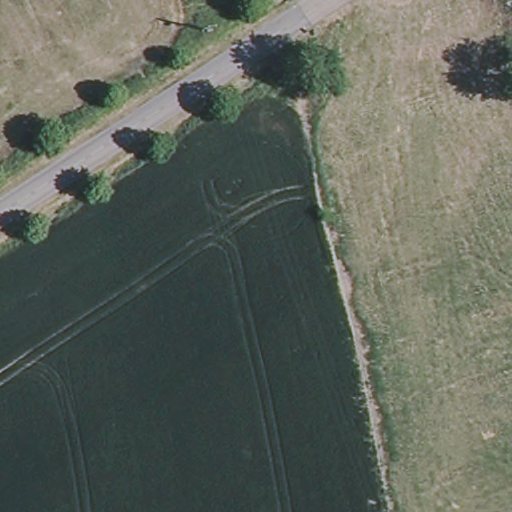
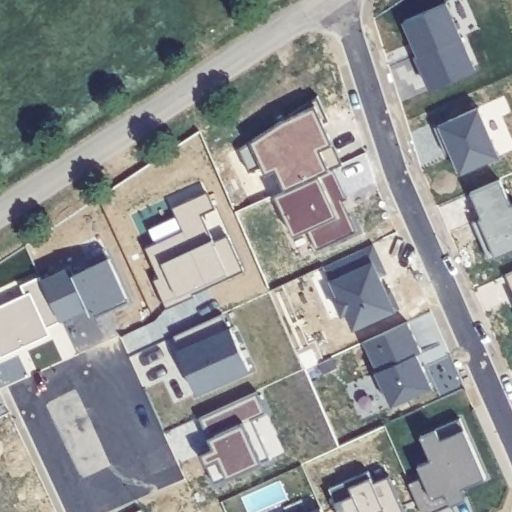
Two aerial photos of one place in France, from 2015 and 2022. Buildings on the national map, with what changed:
new [(403,19),(444,2),(473,67),(429,87),(415,54),(417,52),(412,41),(403,19)]
new [(327,119),(322,122),(341,161),(341,162),(332,167),(282,190),(269,162),(246,172),(236,149),(316,95),(327,119)]
new [(477,105),(498,154),(459,171),(450,151),(445,154),(433,125),(477,105)]
new [(282,190),(332,167),(346,197),(339,201),(346,215),(349,214),(356,231),(315,250),(306,229),(292,235),(273,194),(282,190)]
new [(481,216),(469,190),(499,177),(510,202),(512,202),(512,248),(488,258),(479,240),(471,220),(478,217),(481,216)]
new [(181,232),(172,210),(208,192),(212,211),(216,209),(244,271),(191,294),(193,297),(164,308),(153,282),(157,280),(144,250),(181,232)]
new [(371,242),(384,271),(378,273),(385,290),(388,288),(397,307),(352,327),(345,312),(341,313),(333,297),(337,295),(323,265),(371,242)]
new [(90,312),(88,307),(60,319),(59,320),(40,280),(70,266),(70,268),(86,262),(85,258),(104,250),(107,257),(128,301),(108,310),(92,317),(90,312)]
new [(512,270),(512,290),(504,273),(512,270)]
new [(19,285),(38,276),(40,280),(59,320),(59,321),(46,327),(48,333),(0,357),(0,305),(23,294),(19,285)]
new [(221,312),(231,332),(233,331),(250,367),(196,392),(186,370),(193,367),(187,354),(183,356),(173,335),(221,312)]
new [(420,351),(416,353),(422,366),(432,386),(391,405),(374,371),(376,370),(363,341),(407,320),(420,351)]
new [(256,390),(267,412),(253,418),(271,457),(214,484),(200,452),(212,447),(198,417),(256,390)]
new [(452,504),(433,512),(421,512),(408,483),(422,477),(417,465),(431,460),(421,436),(435,430),(460,418),(486,477),(462,487),(467,497),(452,504)]
new [(328,487),(368,470),(372,481),(388,474),(405,512),(339,512),(328,487)]
new [(282,506),(301,498),(308,512),(285,512),(282,506)]
new [(321,507),(323,512),(310,512),(321,507)]

